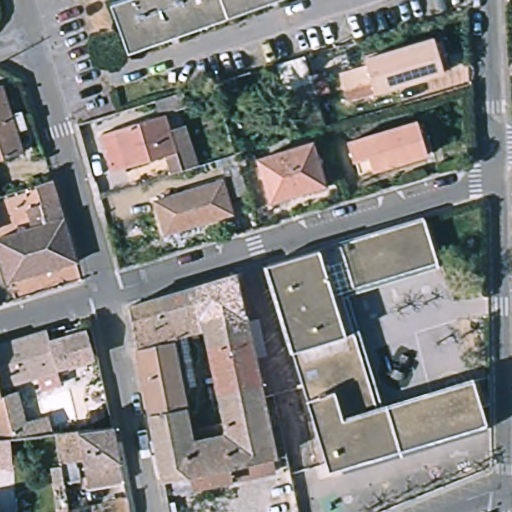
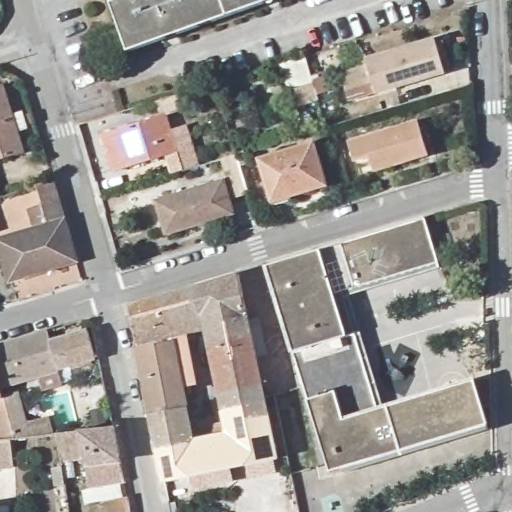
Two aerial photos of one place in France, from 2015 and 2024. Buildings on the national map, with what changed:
unchanged [(123,55),(106,7),(126,0),(277,0),(123,55)]
unchanged [(449,72),(380,93),(380,91),(370,94),(364,72),(373,70),(370,59),(437,37),(449,72)]
unchanged [(319,99),(290,106),(277,62),(288,59),(305,54),(319,99)]
unchanged [(1,74),(10,103),(21,100),(26,117),(16,120),(22,141),(0,148),(0,74),(1,74)]
unchanged [(240,86),(218,94),(213,81),(236,75),(240,86)]
unchanged [(187,109),(156,118),(153,105),(183,95),(187,109)]
unchanged [(176,155),(111,175),(100,140),(164,120),(176,155)]
unchanged [(423,125),(429,123),(432,155),(380,170),(374,155),(359,160),(353,141),(422,120),(423,125)]
unchanged [(326,185),(271,202),(257,159),(311,141),(326,185)]
unchanged [(235,201),(219,206),(204,167),(221,162),(235,201)]
unchanged [(75,251),(9,271),(0,245),(0,227),(46,212),(40,194),(56,188),(75,251)]
unchanged [(217,223),(150,242),(141,210),(207,190),(217,223)]
unchanged [(436,260),(341,290),(377,409),(472,380),(485,424),(329,470),(266,265),(424,217),(436,260)]
unchanged [(191,470),(164,475),(157,442),(155,433),(150,409),(137,341),(128,301),(237,269),(255,357),(235,360),(234,351),(227,352),(224,343),(209,346),(205,325),(185,328),(196,378),(183,380),(184,386),(187,401),(190,413),(192,425),(224,420),(232,461),(227,462),(228,475),(194,482),(191,470)]
unchanged [(47,330),(49,340),(84,330),(94,358),(0,384),(0,345),(47,330)]
unchanged [(234,460),(224,420),(223,416),(216,380),(209,346),(224,343),(227,352),(234,351),(235,360),(255,357),(262,391),(273,389),(276,406),(278,412),(267,414),(275,452),(269,453),(272,466),(237,473),(234,460)]
unchanged [(0,386),(3,395),(0,396),(0,386)]
unchanged [(17,415),(9,417),(4,401),(13,399),(17,415)]
unchanged [(54,485),(51,465),(39,465),(34,435),(56,433),(51,415),(71,411),(76,430),(111,426),(118,461),(85,464),(85,460),(77,460),(79,475),(62,477),(63,484),(54,485)]
unchanged [(27,436),(14,437),(14,435),(11,424),(23,421),(27,436)]
unchanged [(66,509),(66,512),(51,512),(51,511),(66,509)]

